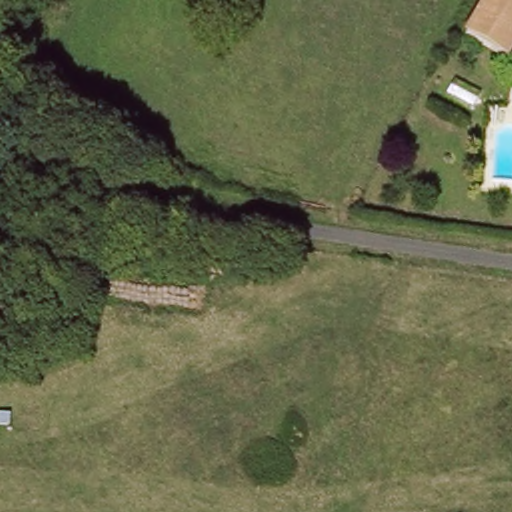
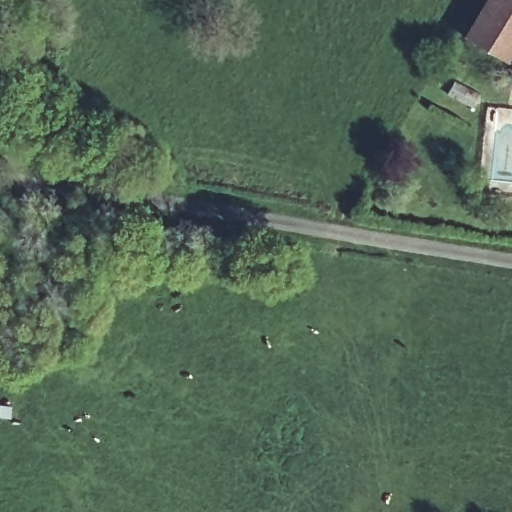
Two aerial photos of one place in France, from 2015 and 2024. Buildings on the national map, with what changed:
unchanged [(469,41),(494,0),(512,0),(512,59),(509,64),(469,41)]

